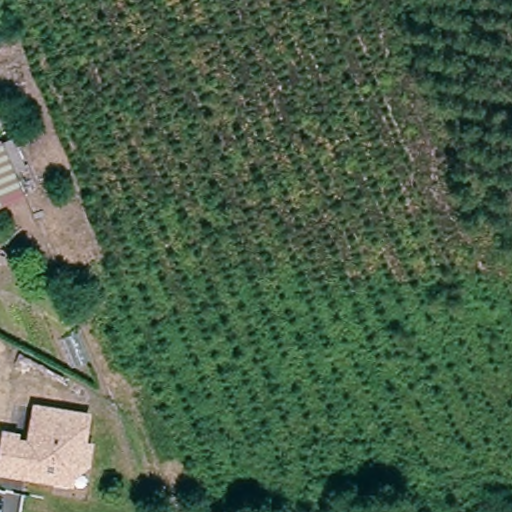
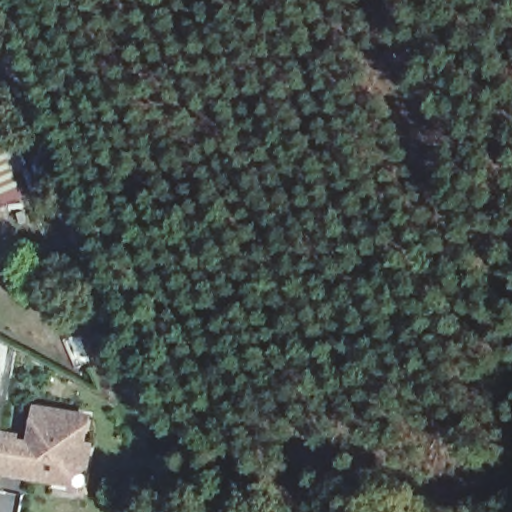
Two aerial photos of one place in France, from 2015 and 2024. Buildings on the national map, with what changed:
unchanged [(0,200),(0,144),(20,191),(0,200)]
unchanged [(92,413),(89,441),(95,442),(92,467),(76,477),(74,487),(0,475),(0,446),(3,430),(20,432),(19,440),(28,440),(33,403),(92,413)]

